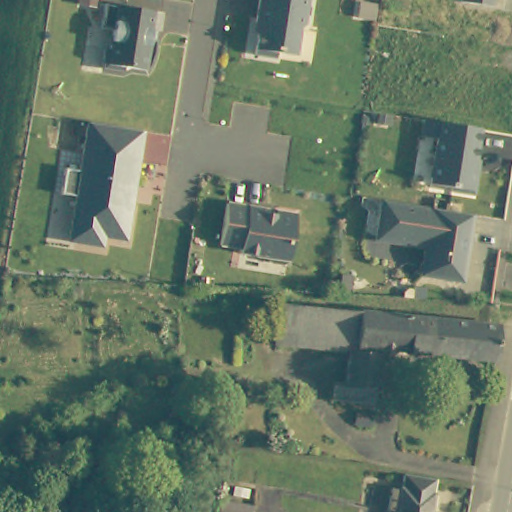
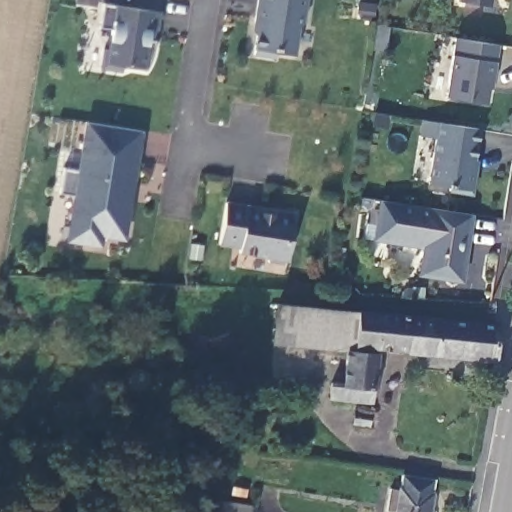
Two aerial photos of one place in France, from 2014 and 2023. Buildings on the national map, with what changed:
unchanged [(301,27),(297,55),(277,52),(275,60),(253,57),(256,35),(252,31),(258,0),(310,0),(306,25),(301,27)]
unchanged [(460,0),(494,0),(493,7),(460,2),(460,0)]
unchanged [(160,31),(155,31),(150,70),(125,67),(124,73),(101,70),(105,48),(110,49),(113,30),(102,28),(105,5),(163,13),(160,31)]
new [(493,89),(491,88),(488,103),(446,96),(453,54),(453,53),(456,38),(500,45),(493,89)]
unchanged [(477,162),(479,162),(474,196),(448,192),(449,187),(428,185),(435,139),(419,136),(423,119),(483,129),(477,162)]
unchanged [(127,241),(104,237),(102,247),(66,242),(74,196),(61,194),(64,167),(79,169),(85,122),(144,132),(127,241)]
unchanged [(463,282),(416,276),(420,250),(372,243),(380,202),(473,215),(463,282)]
unchanged [(290,262),(238,254),(239,250),(219,247),(226,203),(295,213),(290,262)]
unchanged [(386,312),(498,324),(494,360),(372,345),(371,351),(377,351),(371,402),(328,397),(330,380),(343,381),(347,350),(273,343),(277,302),(386,312)]
unchanged [(371,411),(370,424),(357,423),(358,409),(371,411)]
unchanged [(429,479),(422,512),(390,512),(390,511),(381,510),(386,488),(394,489),(398,473),(429,479)]
unchanged [(250,512),(249,512),(216,512),(217,507),(250,512)]

